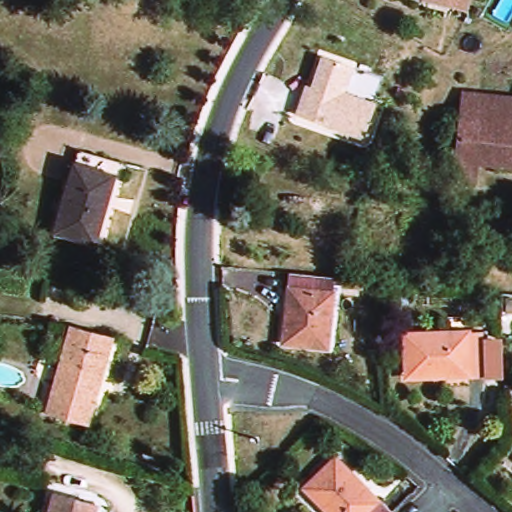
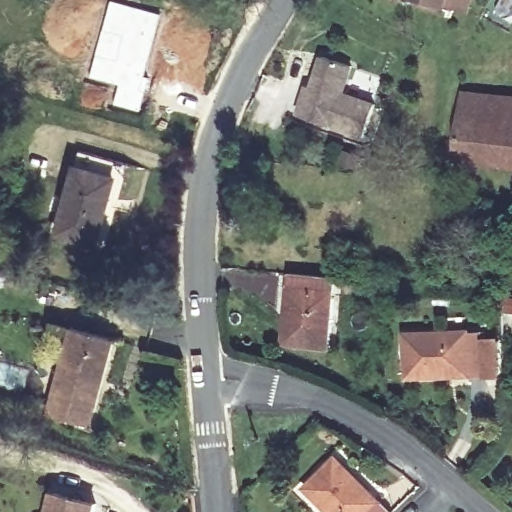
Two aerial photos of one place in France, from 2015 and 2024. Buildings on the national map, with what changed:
new [(108,0),(115,0),(161,13),(143,75),(148,77),(138,113),(110,105),(115,86),(85,77),(108,0)]
unchanged [(442,4),(442,5),(426,0),(469,0),(466,11),(442,4)]
unchanged [(366,138),(300,115),(306,99),(311,101),(327,57),(355,67),(346,94),(378,106),(366,138)]
unchanged [(454,178),(454,170),(456,159),(459,123),(464,93),(512,98),(512,166),(473,161),(474,184),(454,178)]
unchanged [(89,253),(50,242),(74,160),(119,173),(115,187),(108,185),(89,253)]
unchanged [(323,352),(279,348),(282,321),(287,322),(289,295),(282,295),(284,278),(329,282),(323,352)]
unchanged [(356,293),(336,291),(336,284),(358,286),(356,293)]
unchanged [(86,423),(44,411),(68,327),(110,338),(86,423)]
unchanged [(407,378),(404,335),(483,331),(486,377),(469,378),(469,375),(446,376),(407,378)]
unchanged [(336,457),(355,476),(355,477),(356,477),(364,485),(379,502),(381,500),(392,512),(329,512),(306,487),(336,457)]
unchanged [(95,503),(93,512),(48,512),(53,492),(95,503)]

